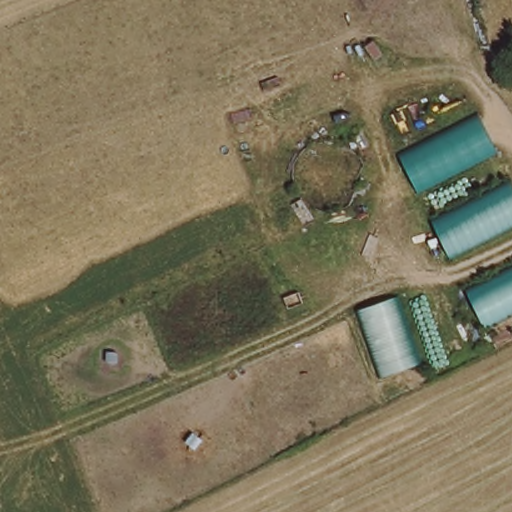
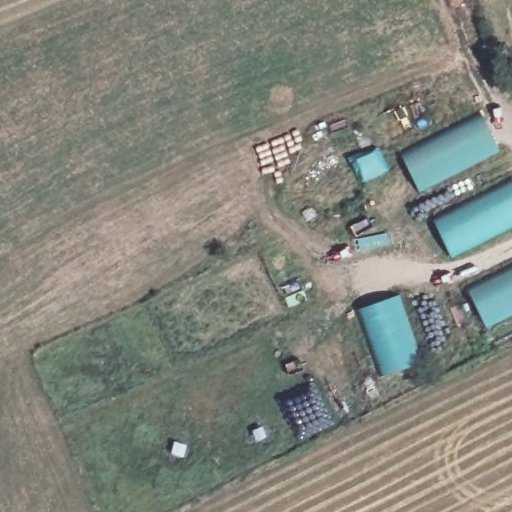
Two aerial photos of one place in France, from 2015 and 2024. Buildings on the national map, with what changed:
unchanged [(417,194),(401,157),(481,117),(502,155),(417,194)]
unchanged [(452,257),(432,221),(512,184),(512,230),(452,257)]
unchanged [(491,331),(470,293),(512,272),(512,320),(491,331)]
unchanged [(386,381),(362,312),(402,298),(427,365),(386,381)]

